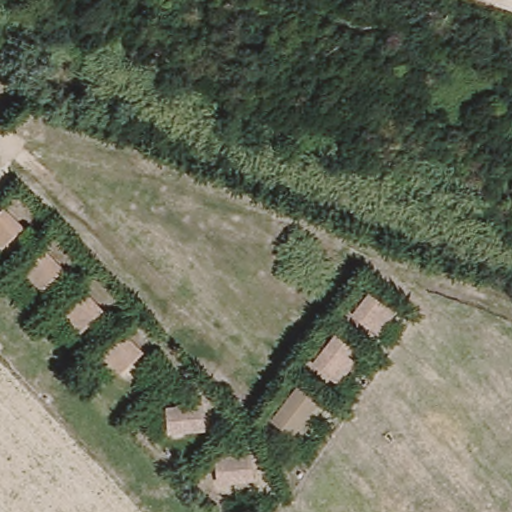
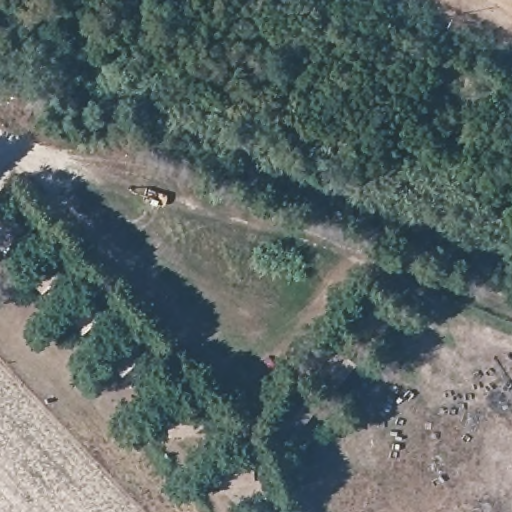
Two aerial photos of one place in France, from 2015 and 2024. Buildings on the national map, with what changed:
unchanged [(3,251),(0,248),(0,212),(8,206),(29,231),(3,251)]
unchanged [(67,271),(42,293),(24,272),(48,251),(67,271)]
unchanged [(368,287),(400,317),(379,343),(344,318),(368,287)]
unchanged [(107,312),(84,331),(63,311),(84,293),(107,312)]
unchanged [(334,334),(368,353),(339,390),(310,366),(334,334)]
unchanged [(147,353),(126,377),(102,358),(128,336),(147,353)]
unchanged [(298,382),(322,402),(293,441),(267,421),(298,382)]
unchanged [(203,398),(207,437),(173,441),(167,410),(203,398)]
unchanged [(255,456),(259,484),(221,486),(217,460),(255,456)]

